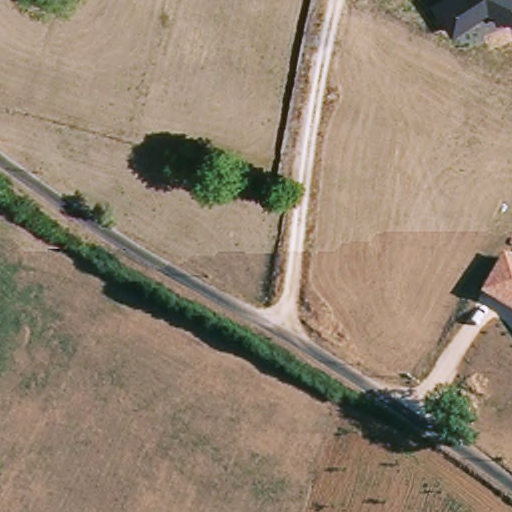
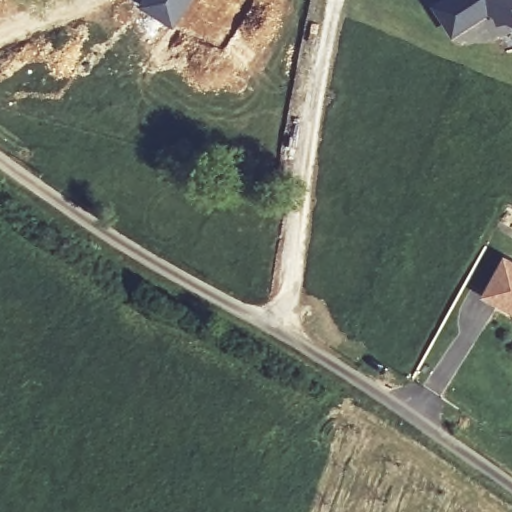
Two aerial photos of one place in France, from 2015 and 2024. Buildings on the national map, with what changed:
new [(139,0),(191,0),(175,24),(138,2),(139,0)]
unchanged [(512,21),(491,10),(452,35),(433,0),(434,0),(512,0),(512,21)]
unchanged [(512,311),(483,296),(503,257),(512,262),(512,311)]

